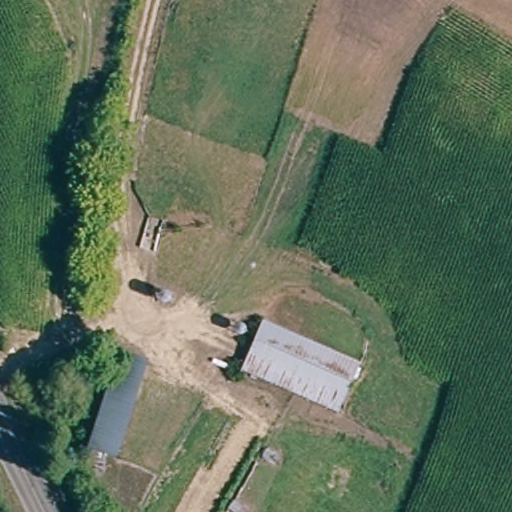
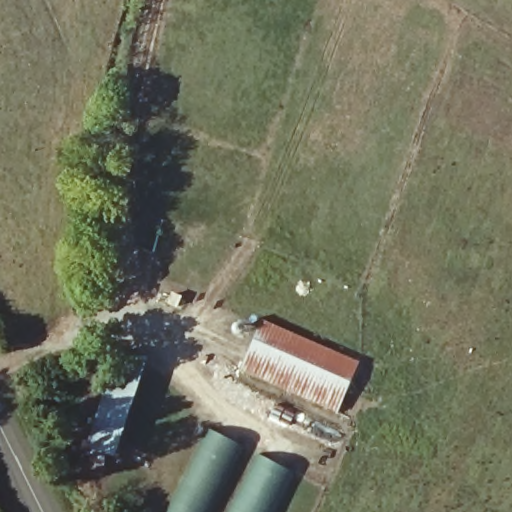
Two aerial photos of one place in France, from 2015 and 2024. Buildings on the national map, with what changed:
unchanged [(363,356),(355,376),(260,339),(267,320),(363,356)]
unchanged [(355,376),(343,407),(247,371),(260,339),(355,376)]
unchanged [(114,455),(85,444),(117,346),(150,358),(114,455)]
new [(170,512),(211,430),(250,449),(219,512),(170,512)]
new [(276,512),(232,512),(260,455),(296,473),(276,512)]

